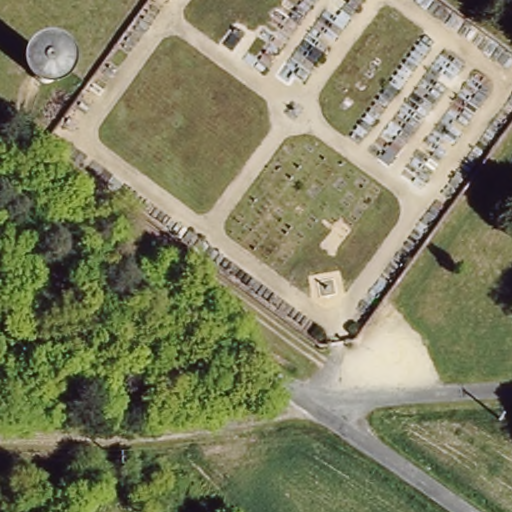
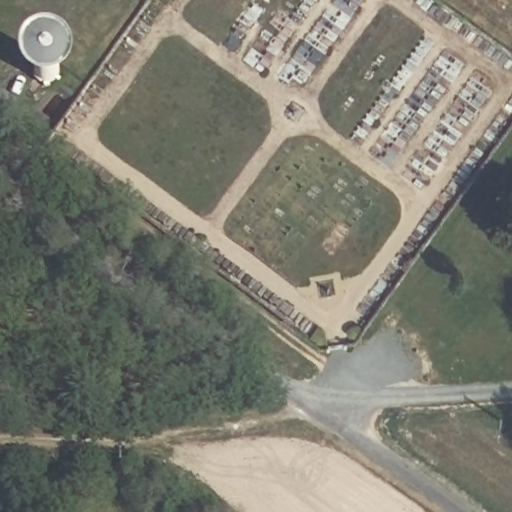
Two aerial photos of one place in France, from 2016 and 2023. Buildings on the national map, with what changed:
unchanged [(17,115),(17,110),(19,104),(26,100),(31,99),(37,103),(41,108),(41,116),(37,120),(34,123),(28,123),(24,122),(20,119),(17,115)]

